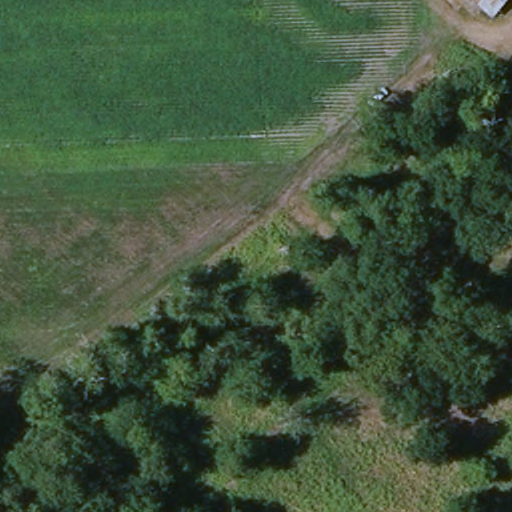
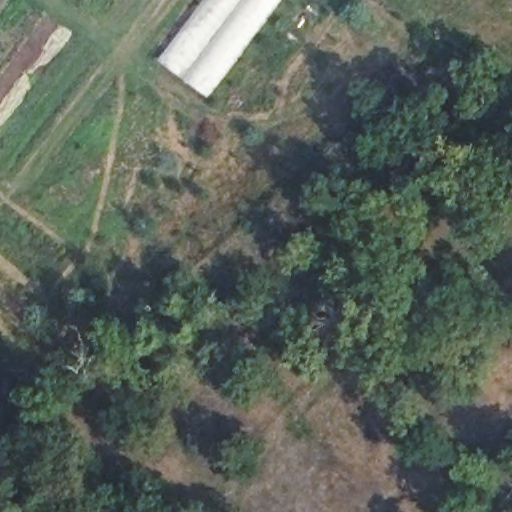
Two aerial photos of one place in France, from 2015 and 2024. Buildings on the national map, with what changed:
new [(202,0),(280,0),(241,54),(207,99),(158,60),(202,0)]
demolished [(490,21),(464,0),(504,0),(490,21)]

